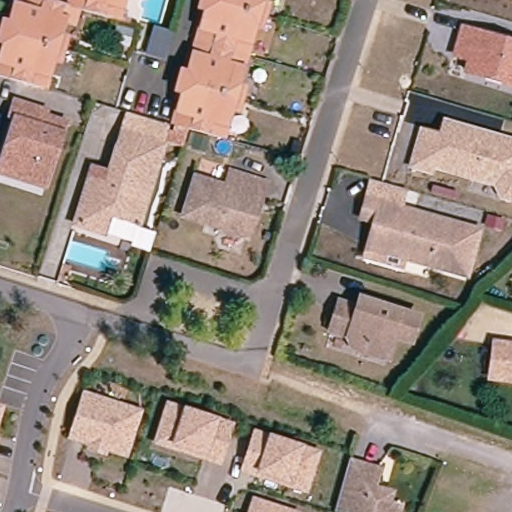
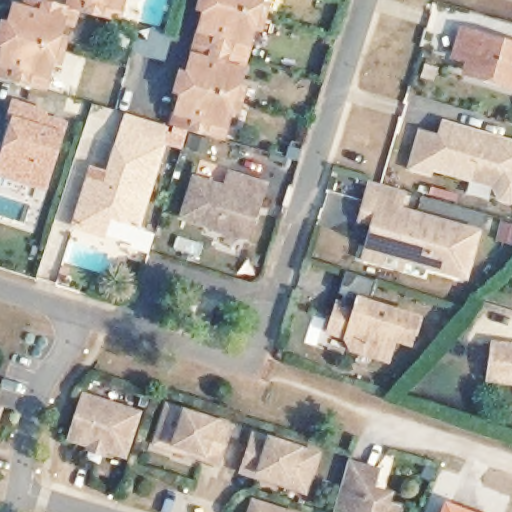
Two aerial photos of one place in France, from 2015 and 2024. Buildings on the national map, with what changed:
unchanged [(0,78),(0,57),(4,44),(9,25),(14,6),(24,8),(26,0),(51,0),(68,5),(69,0),(122,0),(116,18),(76,7),(72,22),(63,19),(59,34),(65,36),(62,50),(58,63),(51,61),(43,90),(0,78)]
unchanged [(224,105),(216,133),(183,124),(168,120),(177,88),(183,68),(200,5),(202,0),(262,0),(255,24),(248,22),(232,78),(239,80),(232,107),(224,105)]
unchanged [(512,46),(512,87),(466,73),(469,62),(454,58),(462,32),(512,46)]
unchanged [(19,104),(49,113),(48,118),(69,125),(49,189),(21,180),(0,174),(0,165),(14,120),(19,104)]
unchanged [(424,176),(406,170),(417,133),(434,138),(438,128),(478,140),(477,145),(491,149),(493,141),(512,146),(512,200),(505,204),(496,201),(489,188),(427,170),(424,176)]
unchanged [(163,145),(139,224),(109,215),(104,235),(75,226),(93,167),(109,172),(121,132),(163,145)]
unchanged [(271,187),(267,204),(262,202),(251,241),(187,223),(199,183),(230,192),(234,177),(271,187)]
unchanged [(373,225),(376,214),(362,211),(367,194),(479,225),(466,270),(428,260),(429,257),(383,244),(369,240),(373,225)]
unchanged [(418,321),(413,336),(398,331),(389,361),(356,351),(349,339),(331,333),(339,307),(357,312),(360,303),(418,321)]
unchanged [(491,380),(494,348),(512,350),(512,382),(491,380)]
unchanged [(84,391),(144,409),(129,461),(109,457),(107,462),(83,455),(85,444),(69,441),(84,391)]
unchanged [(166,402),(233,424),(220,469),(151,446),(166,402)]
unchanged [(0,426),(0,404),(6,406),(0,426)]
unchanged [(254,431),(323,451),(310,498),(242,474),(254,431)]
unchanged [(0,440),(0,434),(1,436),(0,440)]
unchanged [(371,501),(388,508),(386,512),(335,512),(349,471),(378,482),(371,501)]
unchanged [(247,512),(253,497),(296,512),(247,512)]
new [(475,512),(439,512),(444,501),(475,512)]

